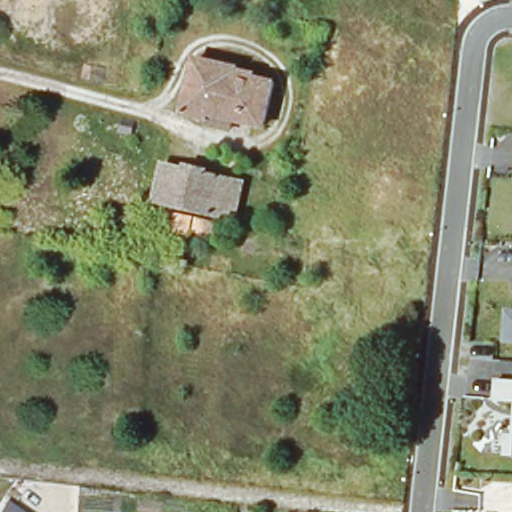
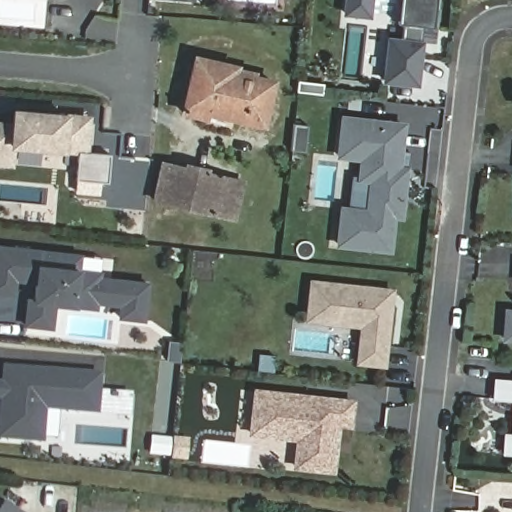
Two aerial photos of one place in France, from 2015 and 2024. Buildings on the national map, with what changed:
new [(368,17),(344,15),(346,0),(370,0),(368,17)]
new [(400,42),(398,62),(403,21),(398,20),(400,0),(436,0),(433,30),(431,42),(420,40),(421,28),(415,86),(384,82),(387,61),(389,41),(400,42)]
unchanged [(207,125),(208,121),(181,115),(195,58),(236,68),(235,72),(273,82),(262,127),(232,120),(230,131),(207,125)]
new [(9,113),(76,119),(74,137),(81,139),(80,153),(104,156),(102,184),(70,181),(72,152),(6,147),(5,166),(0,165),(0,125),(8,126),(9,113)]
new [(403,122),(400,149),(410,150),(408,167),(406,167),(401,214),(393,213),(390,247),(397,248),(396,258),(338,252),(342,217),(367,220),(371,188),(359,187),(361,166),(338,164),(343,116),(403,122)]
unchanged [(235,224),(218,221),(154,206),(163,168),(226,182),(244,187),(235,224)]
new [(36,301),(39,283),(23,281),(18,281),(16,295),(0,293),(0,247),(82,257),(81,272),(102,275),(101,280),(150,285),(146,322),(121,318),(123,306),(99,303),(98,310),(56,305),(54,329),(28,326),(31,302),(31,301),(36,301)]
demolished [(343,306),(349,276),(370,280),(359,311),(343,306)]
new [(362,361),(366,325),(311,318),(315,281),(389,289),(396,290),(394,304),(387,364),(362,361)]
unchanged [(505,337),(507,309),(512,309),(512,338),(505,337)]
new [(0,383),(1,383),(3,367),(100,374),(97,412),(44,408),(41,441),(0,438),(0,405),(1,398),(0,398),(0,383)]
unchanged [(494,400),(495,380),(512,381),(512,401),(494,400)]
new [(355,401),(352,424),(340,423),(335,470),(298,466),(302,437),(254,432),(259,390),(355,401)]
unchanged [(504,455),(505,435),(512,435),(512,455),(504,455)]
unchanged [(14,512),(2,512),(6,507),(14,512)]

